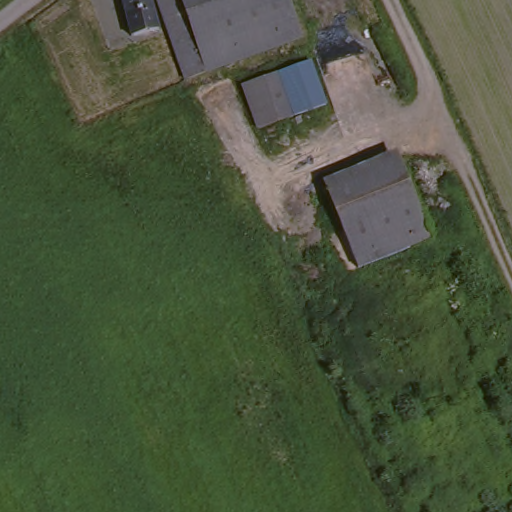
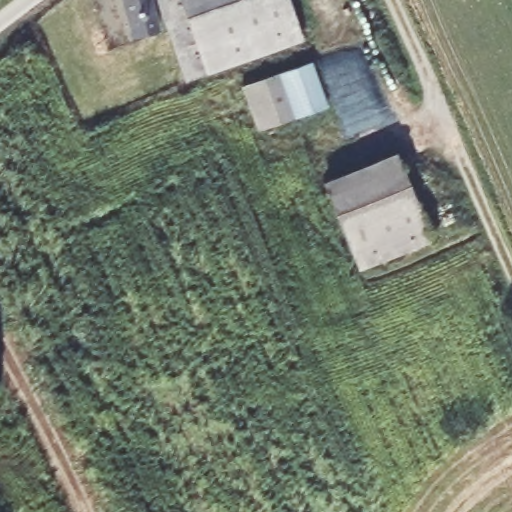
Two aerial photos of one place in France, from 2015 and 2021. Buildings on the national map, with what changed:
unchanged [(121,21),(114,0),(147,0),(152,12),(121,21)]
unchanged [(147,0),(172,0),(186,40),(282,8),(295,44),(177,84),(152,12),(147,0)]
unchanged [(282,8),(186,40),(172,0),(279,0),(282,8)]
unchanged [(302,65),(320,109),(308,113),(291,120),(273,76),(302,65)]
unchanged [(253,133),(234,91),(273,76),(291,120),(253,133)]
unchanged [(352,270),(318,185),(392,157),(426,241),(352,270)]

